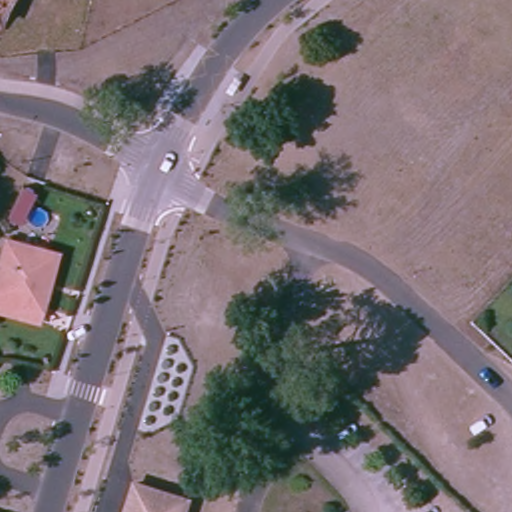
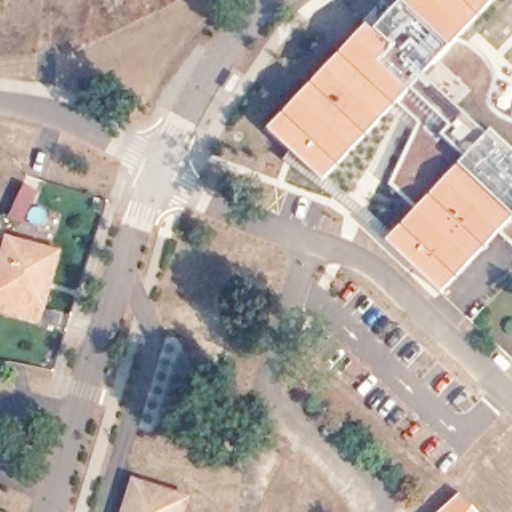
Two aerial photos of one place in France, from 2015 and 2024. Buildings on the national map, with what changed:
demolished [(0,29),(0,0),(19,0),(5,31),(0,29)]
demolished [(360,48),(356,56),(340,48),(343,40),(320,28),(332,3),(342,8),(346,0),(357,0),(382,12),(377,25),(367,20),(354,45),(360,48)]
new [(401,0),(449,48),(422,75),(411,89),(408,91),(378,61),(392,46),(372,27),(399,0),(401,0)]
new [(462,37),(449,48),(401,0),(461,0),(480,18),(462,37)]
new [(461,0),(496,0),(480,18),(461,0)]
new [(366,23),(372,28),(372,27),(392,46),(378,61),(408,91),(397,104),(366,136),(310,83),(366,23)]
new [(449,48),(462,37),(486,56),(500,74),(497,78),(496,86),(499,87),(502,89),(508,81),(512,85),(512,150),(490,129),(485,133),(422,75),(449,48)]
new [(422,75),(485,133),(463,157),(441,136),(449,127),(411,89),(422,75)]
new [(310,83),(366,136),(322,182),(267,129),(310,83)]
new [(417,123),(397,104),(408,91),(411,89),(449,127),(441,136),(463,157),(457,163),(416,208),(388,184),(417,123)]
demolished [(412,174),(376,152),(383,138),(371,130),(386,105),(436,135),(412,174)]
new [(463,157),(485,133),(490,129),(512,150),(512,217),(457,163),(463,157)]
new [(416,208),(457,163),(512,217),(512,219),(498,234),(440,295),(383,240),(416,208)]
new [(498,234),(512,219),(512,248),(498,234)]
unchanged [(0,272),(5,258),(10,241),(62,258),(39,324),(0,312),(0,272)]
unchanged [(180,512),(128,512),(137,488),(183,504),(180,512)]
new [(460,491),(478,512),(437,512),(460,491)]

